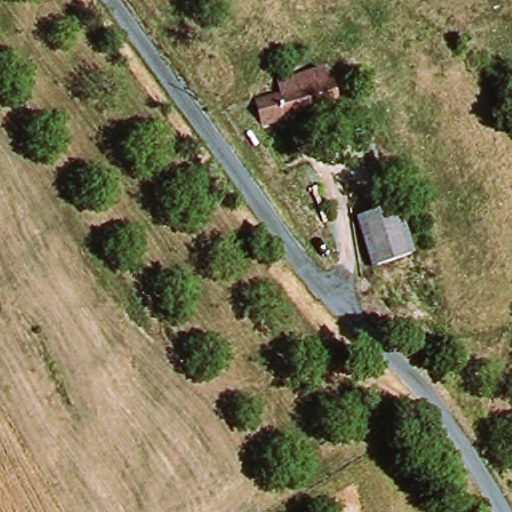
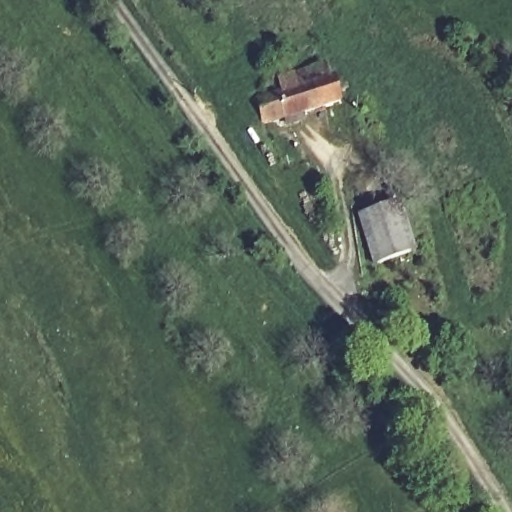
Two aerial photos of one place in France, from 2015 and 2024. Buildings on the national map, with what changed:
unchanged [(268,121),(261,97),(286,92),(285,88),(301,84),(298,72),(333,65),(336,75),(348,79),(343,81),(348,101),(268,121)]
unchanged [(379,260),(365,214),(402,202),(417,250),(379,260)]

